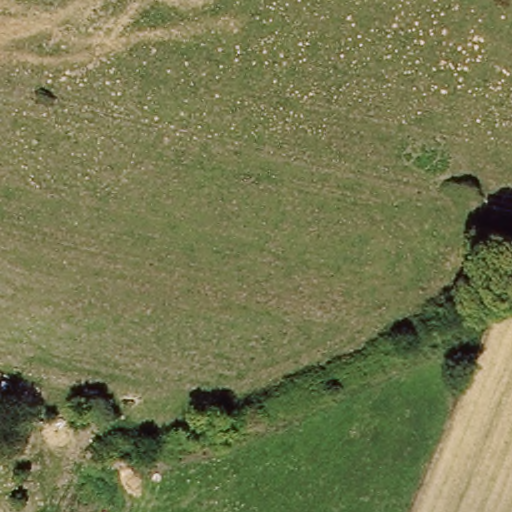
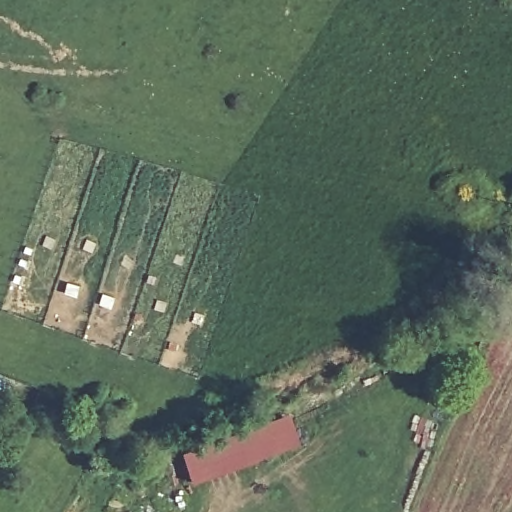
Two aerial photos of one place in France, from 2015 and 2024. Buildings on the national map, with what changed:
new [(302,442),(195,481),(183,451),(291,412),(302,442)]

